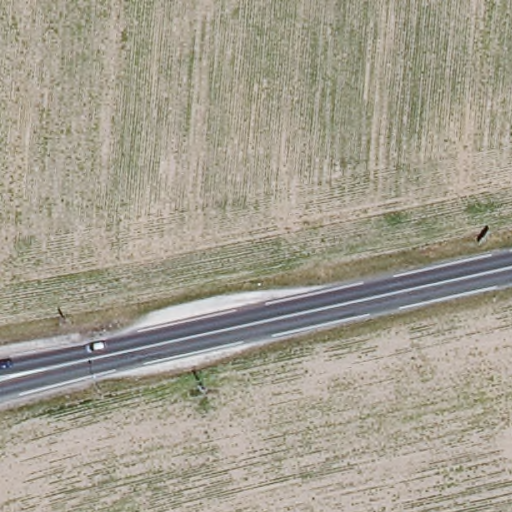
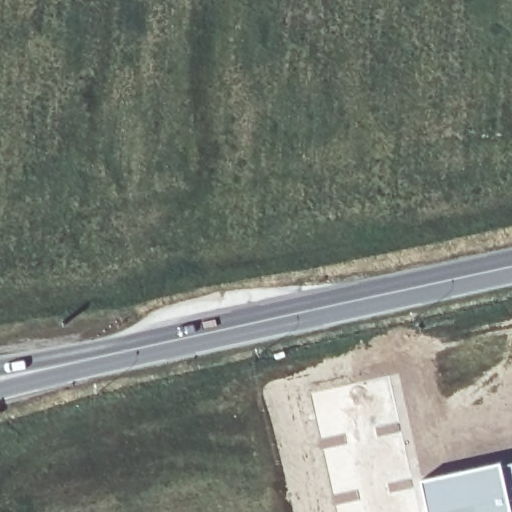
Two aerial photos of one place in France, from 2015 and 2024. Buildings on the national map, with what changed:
new [(503,462),(512,460),(512,512),(428,512),(420,477),(503,460),(503,462)]

